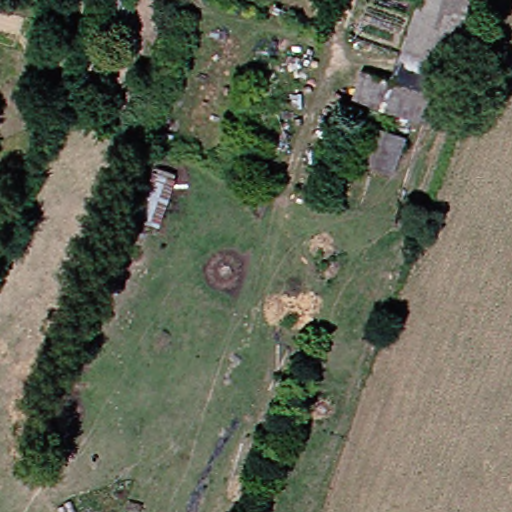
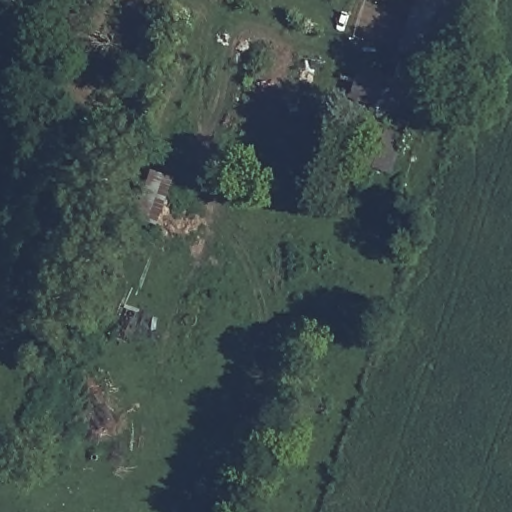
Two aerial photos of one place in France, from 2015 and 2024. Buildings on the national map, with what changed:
unchanged [(447,59),(447,60),(399,47),(400,45),(412,0),(464,0),(447,59)]
unchanged [(388,82),(399,47),(447,60),(426,126),(347,100),(355,72),(388,82)]
unchanged [(349,161),(363,126),(400,138),(386,175),(349,161)]
unchanged [(19,438),(15,450),(4,447),(8,435),(19,438)]

